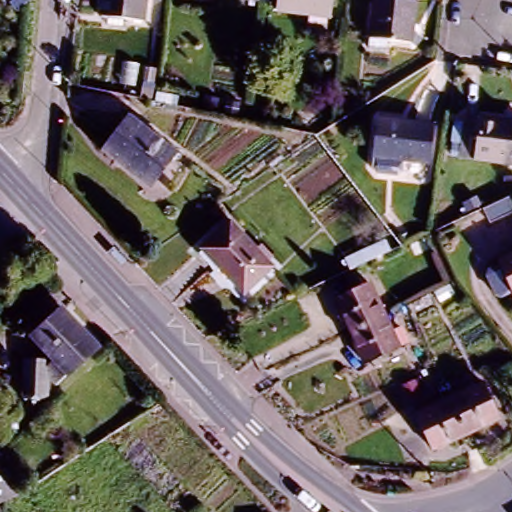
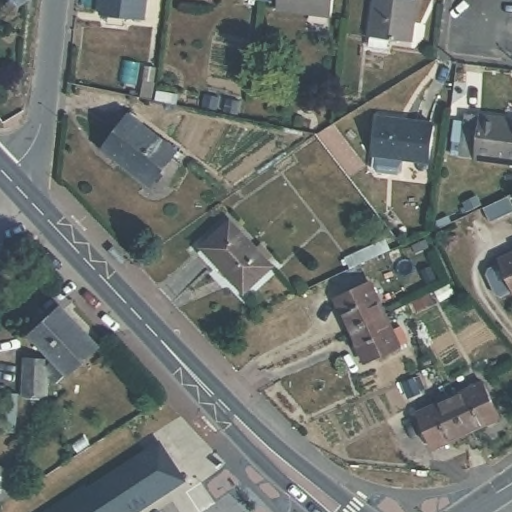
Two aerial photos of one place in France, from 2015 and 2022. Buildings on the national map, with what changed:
unchanged [(138,19),(98,15),(100,0),(140,0),(138,19)]
unchanged [(330,13),(276,7),(277,0),(272,0),(332,0),(330,13)]
unchanged [(409,44),(369,40),(374,0),(414,0),(409,44)]
unchanged [(480,150),(481,143),(467,141),(471,114),(472,107),(486,110),(512,114),(512,155),(480,150)]
unchanged [(375,151),(380,114),(432,120),(427,157),(375,151)]
unchanged [(97,144),(129,115),(170,160),(142,186),(113,153),(109,157),(97,144)]
unchanged [(229,217),(269,263),(239,290),(199,244),(229,217)]
unchanged [(363,244),(378,237),(384,249),(369,256),(363,244)]
unchanged [(509,295),(494,261),(512,253),(512,294),(509,295)]
unchanged [(325,285),(357,270),(372,303),(340,317),(325,285)]
unchanged [(340,317),(372,303),(387,335),(355,350),(340,317)]
unchanged [(61,315),(94,351),(54,387),(45,379),(44,400),(33,408),(28,414),(18,404),(21,365),(50,366),(29,343),(61,315)]
unchanged [(486,385),(500,419),(466,434),(451,400),(486,385)]
unchanged [(433,449),(418,414),(451,400),(466,434),(433,449)]
unchanged [(9,512),(0,512),(0,441),(4,442),(12,442),(10,472),(23,474),(34,493),(19,501),(9,507),(9,511),(9,512)]
new [(52,512),(143,454),(141,452),(143,450),(144,452),(151,448),(155,454),(158,453),(169,472),(168,473),(172,479),(158,488),(160,491),(128,512),(52,512)]

